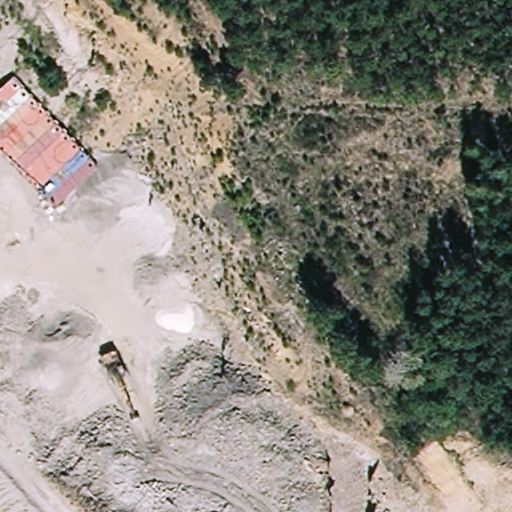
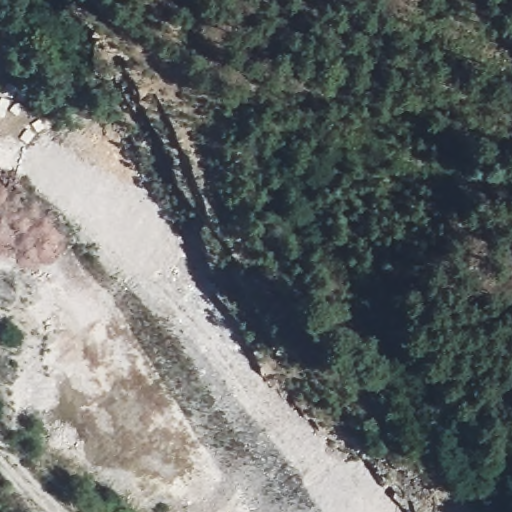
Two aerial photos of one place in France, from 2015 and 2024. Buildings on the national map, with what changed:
demolished [(55,208),(0,152),(0,92),(15,78),(98,168),(55,208)]

